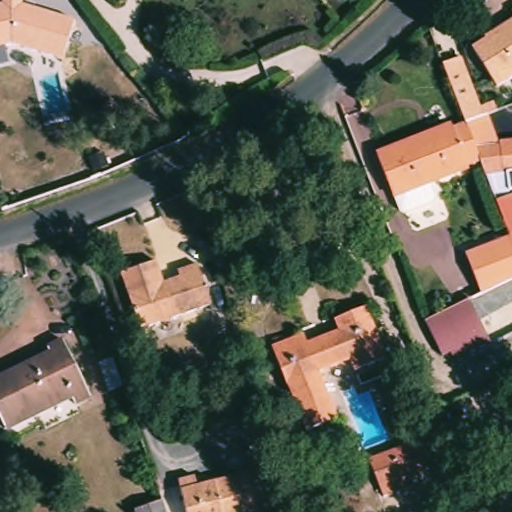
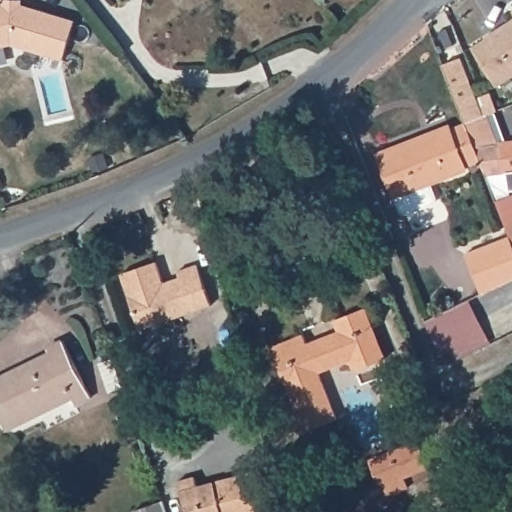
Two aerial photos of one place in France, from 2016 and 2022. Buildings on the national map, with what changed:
unchanged [(2,0),(21,0),(21,5),(74,21),(62,60),(11,44),(0,47),(0,5),(2,4),(2,0)]
unchanged [(497,86),(472,46),(485,38),(484,36),(494,30),(505,23),(512,18),(512,76),(497,86)]
unchanged [(460,58),(482,114),(483,116),(465,123),(464,121),(442,65),(460,58)]
unchanged [(423,135),(425,139),(450,129),(465,168),(393,197),(377,154),(423,135)]
unchanged [(480,155),(503,151),(502,150),(512,148),(512,177),(508,178),(491,181),(480,155)]
unchanged [(512,199),(512,249),(507,238),(495,205),(512,199)]
unchanged [(478,296),(462,255),(507,238),(512,249),(512,283),(478,296)]
unchanged [(181,276),(179,270),(198,263),(212,304),(141,328),(122,273),(157,260),(164,282),(172,279),(181,276)]
unchanged [(512,301),(512,332),(459,362),(455,354),(442,361),(433,345),(512,301)]
unchanged [(305,340),(307,348),(338,336),(334,326),(367,313),(387,363),(354,376),(350,365),(320,378),(337,424),(307,436),(289,390),(287,390),(272,353),(305,340)]
unchanged [(47,354),(62,347),(90,402),(74,410),(70,401),(6,433),(0,421),(0,385),(50,360),(47,354)]
unchanged [(123,388),(109,393),(99,364),(113,360),(123,388)]
unchanged [(425,468),(401,478),(405,488),(380,498),(368,471),(364,460),(387,451),(413,440),(425,468)]
unchanged [(197,486),(246,473),(256,512),(187,512),(179,482),(195,477),(197,486)]
unchanged [(157,502),(160,512),(131,512),(131,510),(157,502)]

